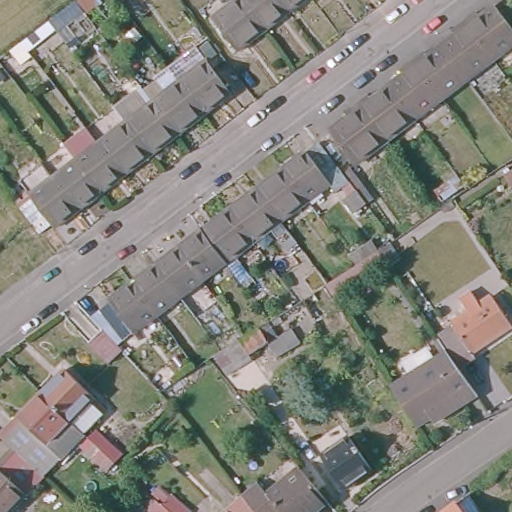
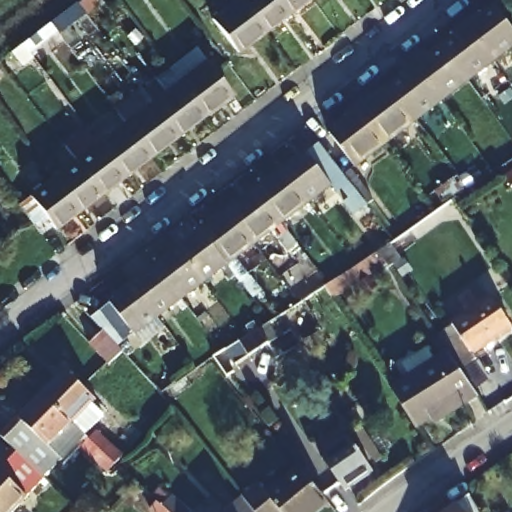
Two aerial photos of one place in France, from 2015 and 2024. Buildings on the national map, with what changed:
unchanged [(238,51),(213,19),(237,0),(302,0),(238,51)]
unchanged [(457,24),(470,14),(474,17),(483,10),(487,7),(512,36),(512,37),(487,59),(457,24)]
unchanged [(487,59),(465,77),(439,46),(445,42),(449,37),(445,33),(450,29),(457,24),(487,59)]
unchanged [(465,77),(440,97),(410,62),(417,57),(423,52),(427,56),(434,50),(439,46),(465,77)]
unchanged [(440,97),(412,121),(386,91),(402,77),(398,72),(410,62),(440,97)]
unchanged [(44,240),(18,207),(192,73),(217,104),(44,240)]
unchanged [(368,97),(372,102),(386,91),(412,121),(385,144),(357,108),(368,97)]
unchanged [(385,144),(358,167),(333,135),(350,121),(347,116),(357,108),(385,144)]
unchanged [(328,188),(132,336),(107,303),(302,154),(328,188)]
unchanged [(343,197),(338,191),(352,182),(364,199),(357,203),(350,194),(343,197)]
unchanged [(373,252),(385,245),(397,262),(385,268),(373,252)]
unchanged [(450,322),(490,297),(509,326),(470,352),(468,350),(455,358),(432,325),(437,322),(442,330),(451,324),(450,322)]
unchanged [(275,341),(247,360),(250,365),(237,372),(225,353),(265,326),(275,341)]
unchanged [(106,366),(87,346),(100,332),(105,337),(119,352),(106,366)]
unchanged [(408,422),(397,405),(388,388),(407,376),(400,363),(425,348),(432,361),(445,353),(475,397),(440,420),(436,416),(413,429),(408,422)]
unchanged [(67,367),(97,396),(92,401),(104,412),(87,431),(48,396),(43,391),(67,367)]
unchanged [(48,396),(87,431),(47,475),(46,474),(17,447),(3,433),(43,391),(48,396)]
unchanged [(99,426),(115,441),(107,450),(100,457),(83,442),(90,435),(99,426)]
unchanged [(320,460),(347,442),(370,476),(343,494),(320,461),(320,460)]
unchanged [(46,474),(10,512),(0,512),(0,464),(17,447),(46,474)]
unchanged [(117,460),(113,456),(122,447),(126,451),(117,460)]
unchanged [(270,493),(301,468),(305,473),(327,501),(314,512),(255,512),(242,496),(262,482),(270,493)]
unchanged [(255,512),(222,512),(242,496),(255,512)]
unchanged [(476,512),(449,512),(468,498),(476,512)]
unchanged [(170,501),(183,512),(158,512),(160,510),(170,501)]

